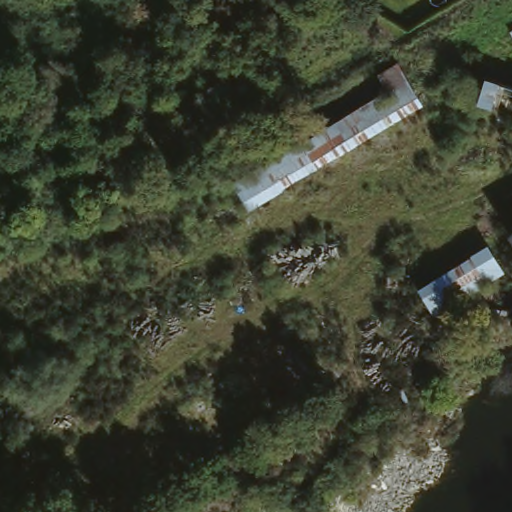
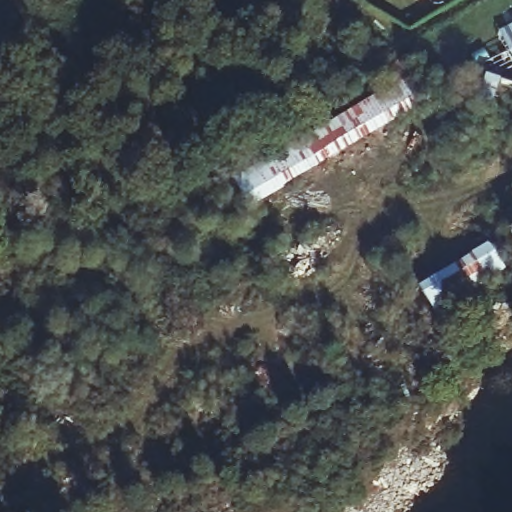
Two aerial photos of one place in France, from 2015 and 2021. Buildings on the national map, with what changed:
unchanged [(232,180),(368,108),(358,87),(392,70),(415,113),(246,206),(232,180)]
unchanged [(500,83),(512,87),(512,114),(493,107),(500,83)]
unchanged [(478,252),(495,277),(447,305),(457,319),(444,327),(419,287),(478,252)]

